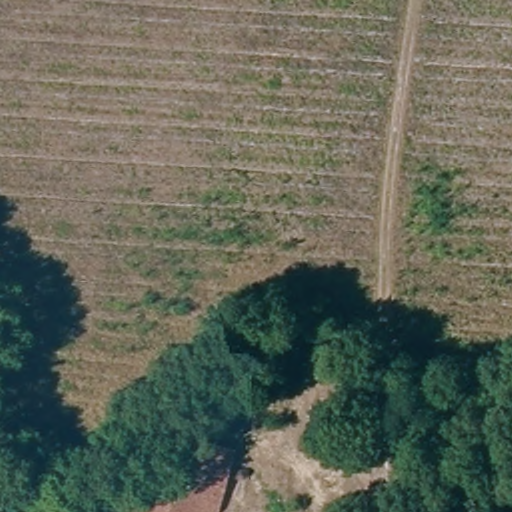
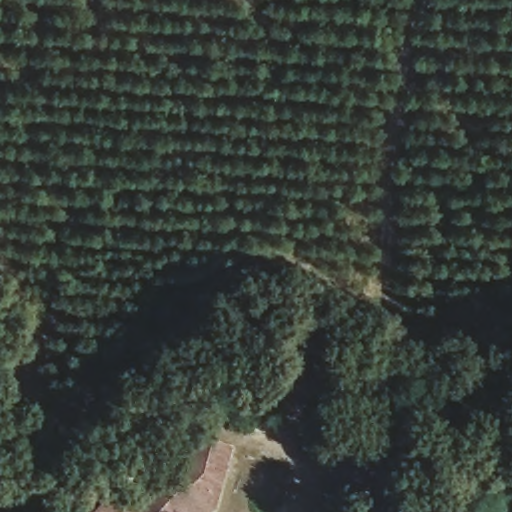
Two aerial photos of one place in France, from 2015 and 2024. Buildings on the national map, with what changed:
unchanged [(209,462),(198,512),(88,512),(106,493),(122,508),(124,507),(157,471),(168,481),(172,477),(181,456),(209,462)]

